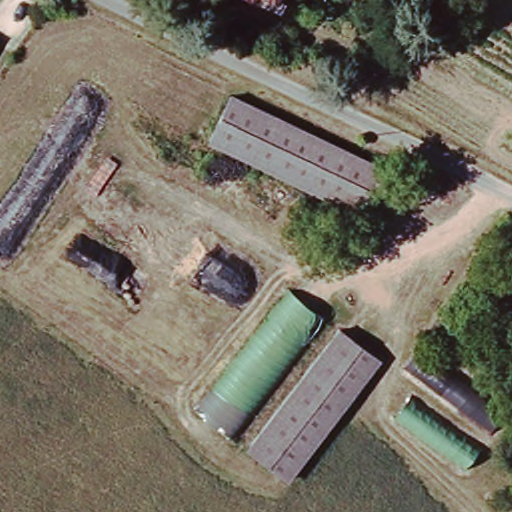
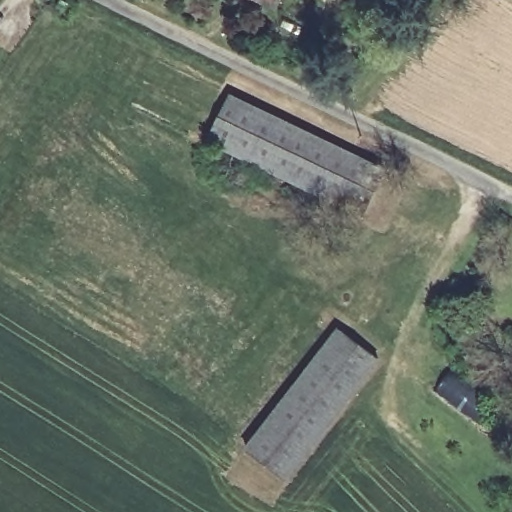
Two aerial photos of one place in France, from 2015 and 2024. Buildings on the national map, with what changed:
unchanged [(253,1),(253,0),(254,0),(253,1)]
unchanged [(233,98),(383,172),(363,214),(212,139),(233,98)]
demolished [(325,323),(239,439),(203,413),(292,299),(325,323)]
unchanged [(342,331),(382,362),(330,427),(287,482),(277,475),(246,452),(287,401),(342,331)]
unchanged [(423,376),(437,361),(450,375),(456,367),(511,408),(490,433),(423,376)]
unchanged [(411,396),(485,447),(465,471),(394,422),(411,396)]

